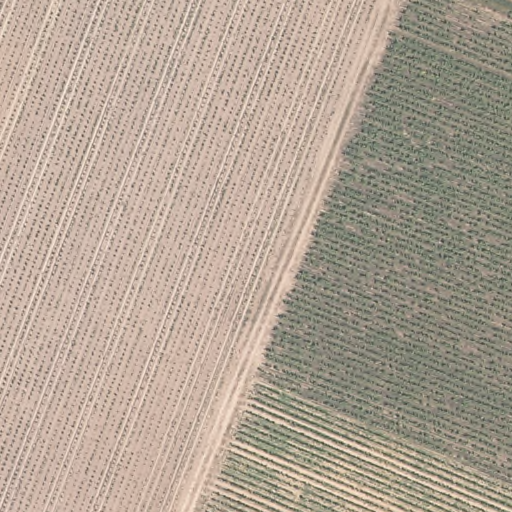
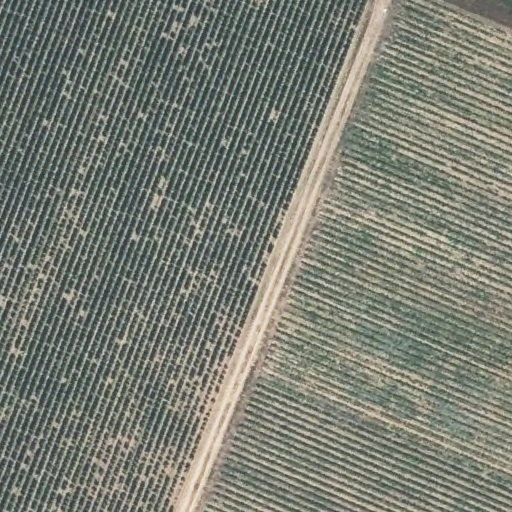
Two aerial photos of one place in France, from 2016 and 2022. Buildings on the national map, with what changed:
unchanged [(241,287),(257,295),(252,310),(233,301),(241,287)]

